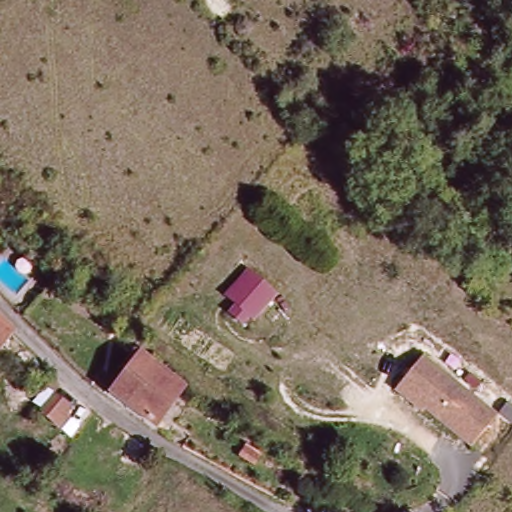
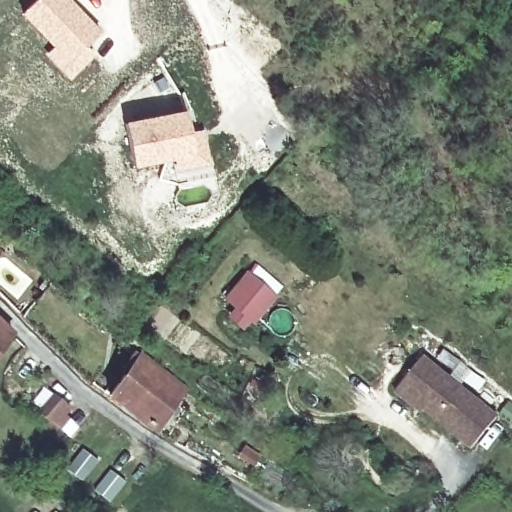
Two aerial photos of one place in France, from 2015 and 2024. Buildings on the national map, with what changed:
new [(19,13),(32,0),(65,0),(96,32),(76,51),(85,60),(65,79),(47,59),(55,51),(19,13)]
new [(182,114),(189,156),(128,167),(120,125),(182,114)]
unchanged [(0,290),(0,266),(19,245),(36,262),(26,274),(39,285),(19,307),(6,296),(0,290)]
unchanged [(232,317),(239,306),(227,299),(246,271),(275,290),(257,317),(254,315),(247,326),(232,317)]
unchanged [(0,362),(0,329),(15,344),(0,362)]
unchanged [(185,387),(159,424),(113,396),(129,373),(144,356),(171,378),(185,387)]
unchanged [(415,408),(395,392),(423,357),(496,416),(470,449),(423,410),(420,413),(415,408)]
unchanged [(69,420),(87,435),(77,447),(45,420),(59,402),(74,414),(69,420)]
unchanged [(242,442),(254,452),(247,463),(234,453),(242,442)]

